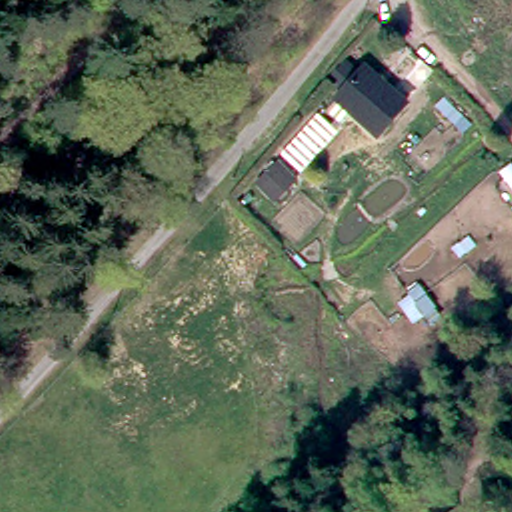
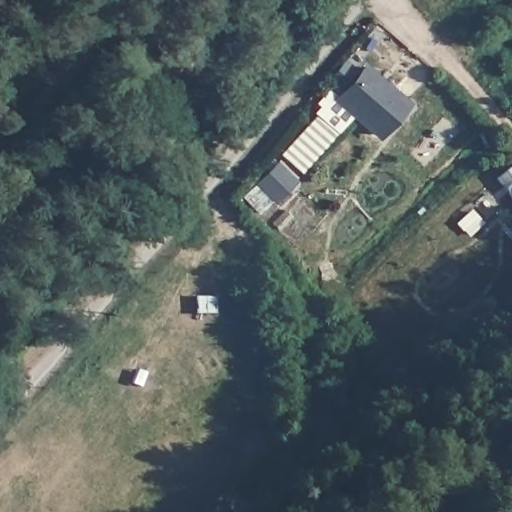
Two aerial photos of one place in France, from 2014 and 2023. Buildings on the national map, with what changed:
unchanged [(352,68),(337,84),(325,72),(338,55),(352,68)]
unchanged [(365,66),(407,102),(380,133),(338,99),(365,66)]
unchanged [(297,181),(277,205),(255,186),(282,156),(297,181)]

